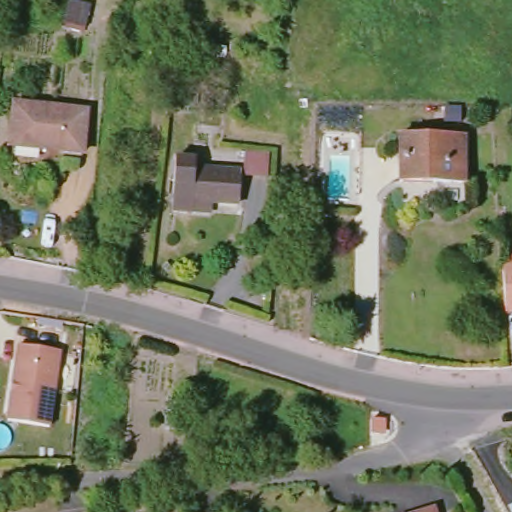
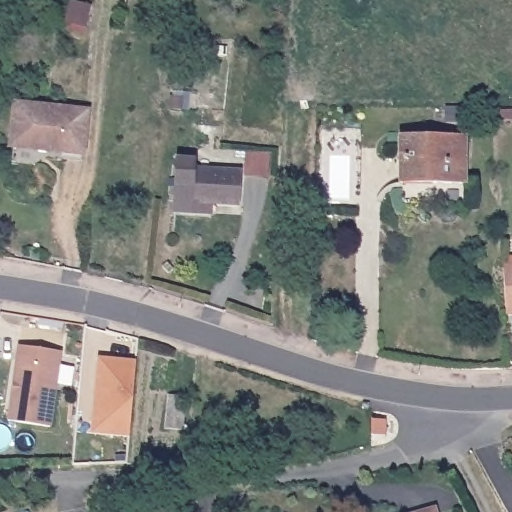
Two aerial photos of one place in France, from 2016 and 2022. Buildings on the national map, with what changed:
unchanged [(82,111),(77,155),(5,148),(8,105),(82,111)]
unchanged [(399,137),(464,136),(464,185),(398,185),(399,137)]
unchanged [(267,152),(266,175),(242,174),(242,151),(267,152)]
unchanged [(193,215),(172,214),(174,163),(196,162),(196,170),(218,170),(240,171),(238,207),(214,206),(211,206),(210,215),(193,215)]
unchanged [(505,311),(502,262),(512,261),(512,311),(505,311)]
unchanged [(8,390),(12,391),(14,382),(9,381),(15,344),(57,350),(47,429),(3,423),(8,390)]
new [(91,431),(97,357),(136,361),(129,436),(91,431)]

